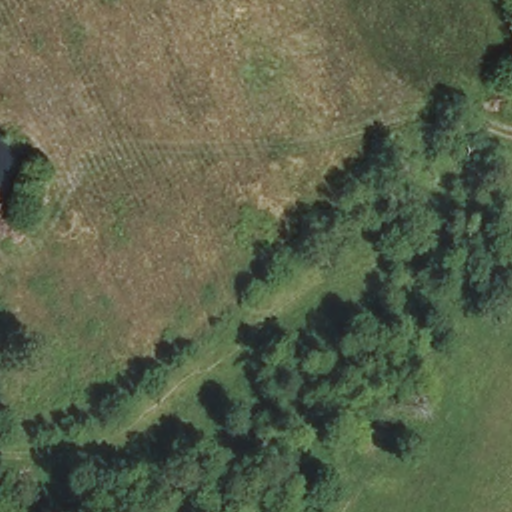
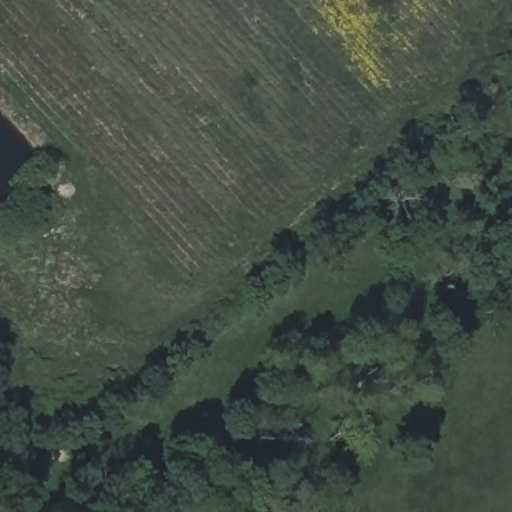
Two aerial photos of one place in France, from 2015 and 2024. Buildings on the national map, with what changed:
[]

